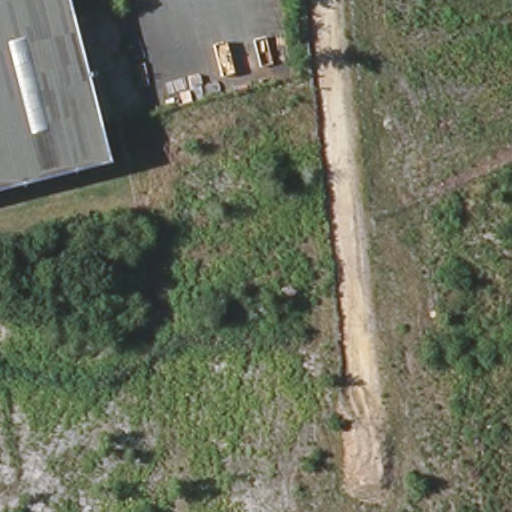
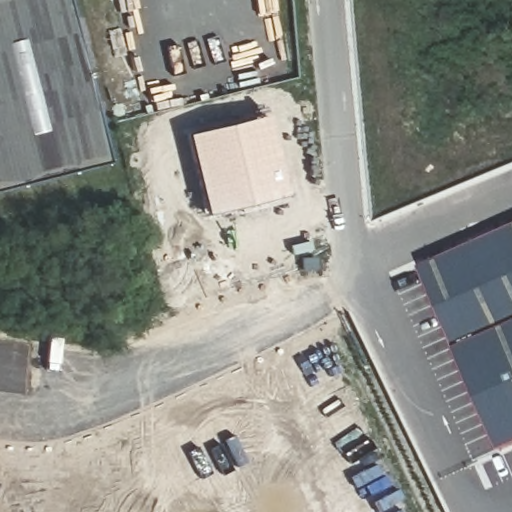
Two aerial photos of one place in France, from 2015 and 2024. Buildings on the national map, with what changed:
unchanged [(0,191),(0,0),(62,0),(107,161),(0,191)]
new [(266,115),(288,195),(206,214),(186,134),(266,115)]
new [(512,226),(512,445),(500,450),(420,267),(512,226)]

